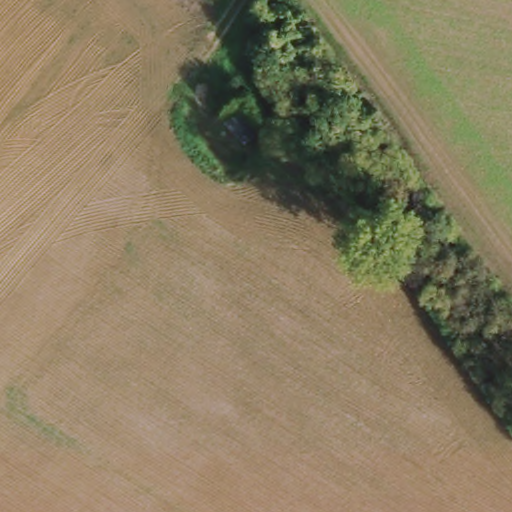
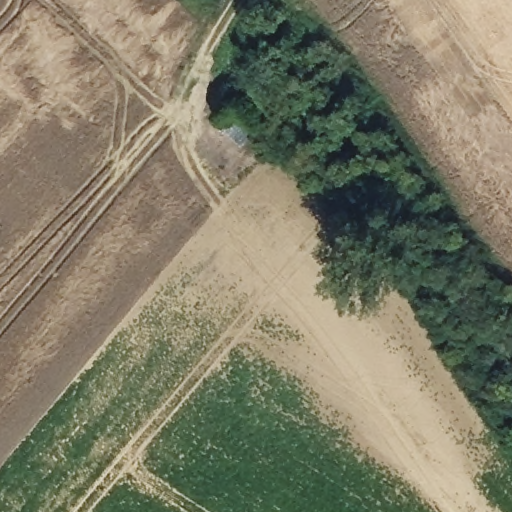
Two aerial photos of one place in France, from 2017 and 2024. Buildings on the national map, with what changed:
unchanged [(223,121),(238,107),(258,130),(243,143),(223,121)]

